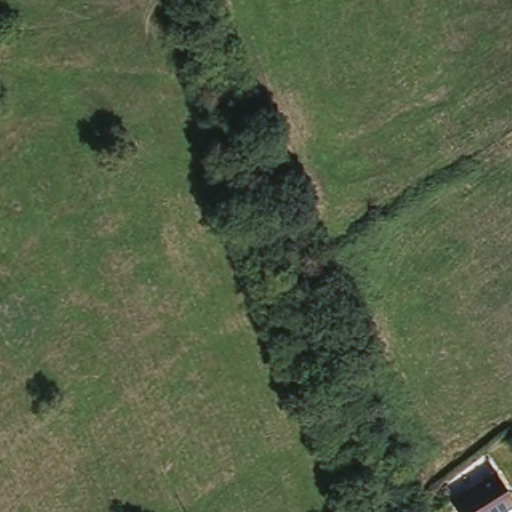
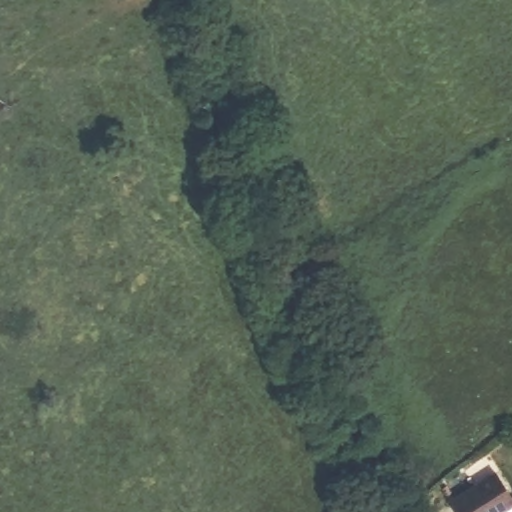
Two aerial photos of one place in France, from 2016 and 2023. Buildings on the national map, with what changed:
unchanged [(487,472),(509,501),(496,512),(451,512),(445,504),(487,472)]

